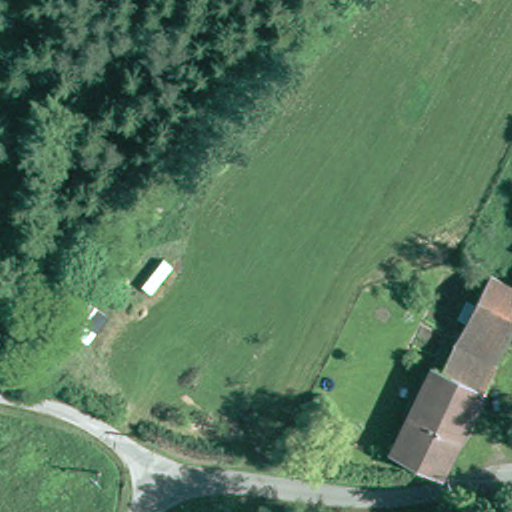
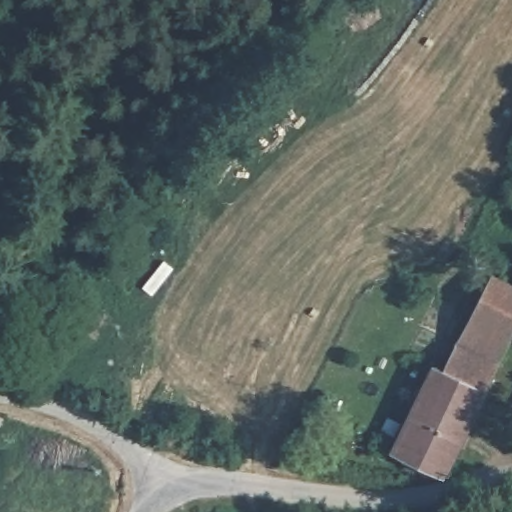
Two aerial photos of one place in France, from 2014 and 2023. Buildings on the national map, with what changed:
unchanged [(441,368),(448,371),(497,278),(506,282),(512,286),(512,349),(446,475),(396,450),(441,368)]
unchanged [(98,344),(74,327),(92,302),(116,318),(98,344)]

